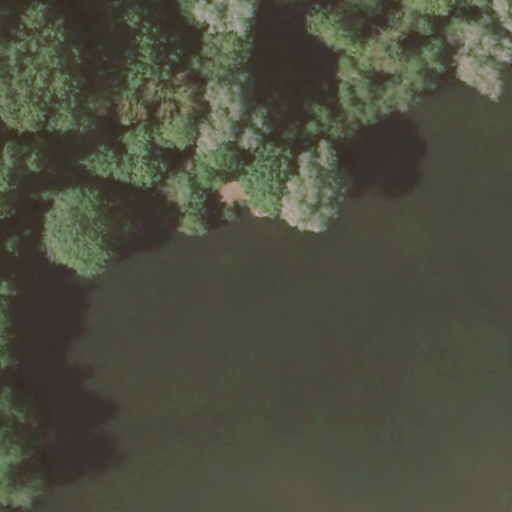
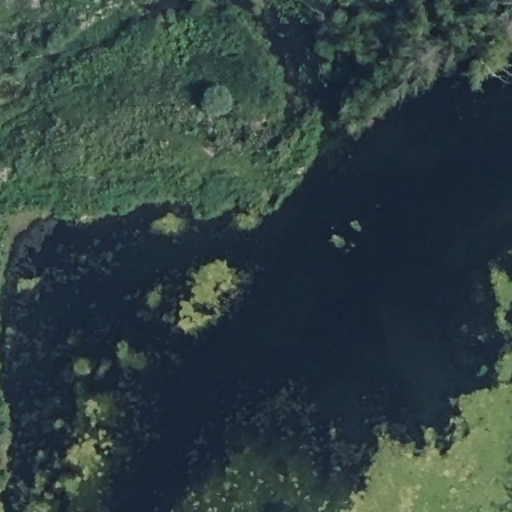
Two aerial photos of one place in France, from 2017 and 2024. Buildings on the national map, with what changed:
unchanged [(0,59),(0,43),(1,59),(0,59)]

